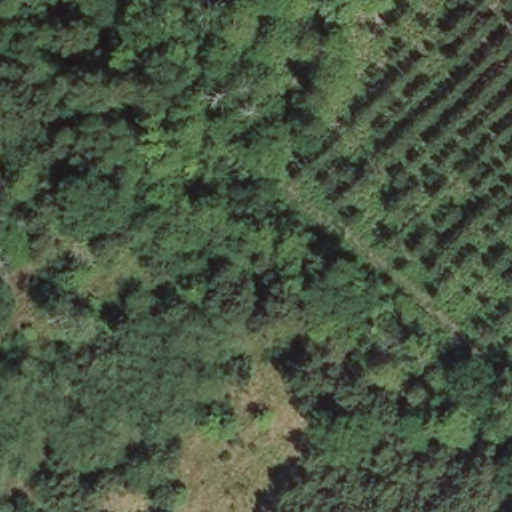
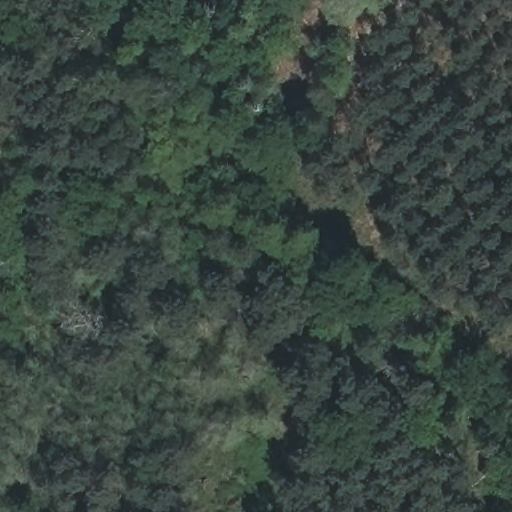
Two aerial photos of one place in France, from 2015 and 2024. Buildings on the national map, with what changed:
unchanged [(307,362),(315,355),(332,368),(315,389),(296,375),(307,362)]

